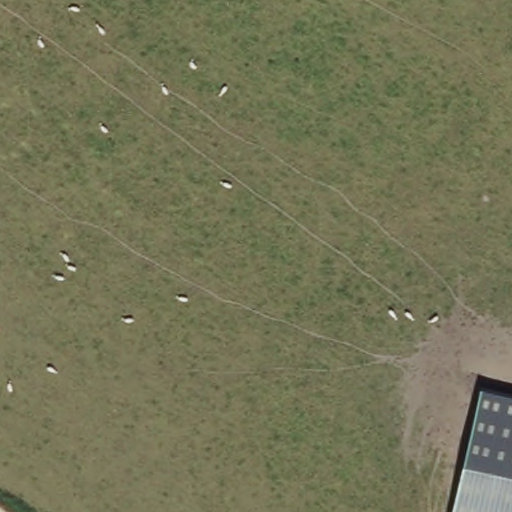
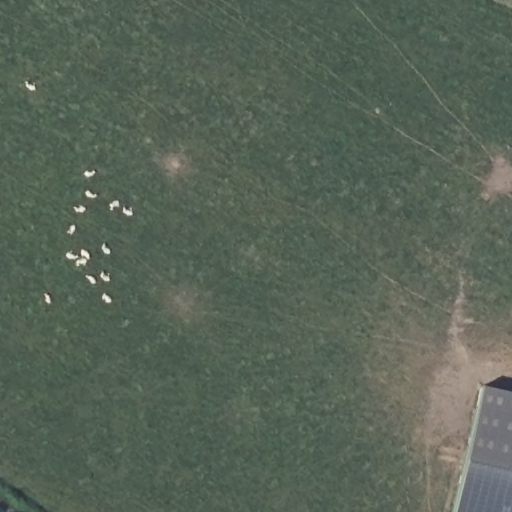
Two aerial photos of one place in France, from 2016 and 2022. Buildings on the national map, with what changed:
unchanged [(512,392),(512,512),(452,512),(480,384),(512,392)]

